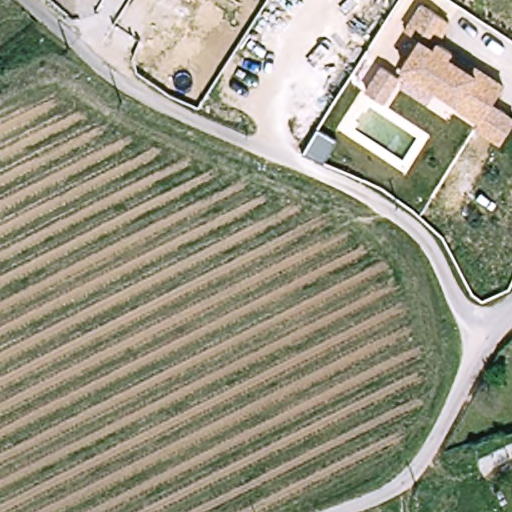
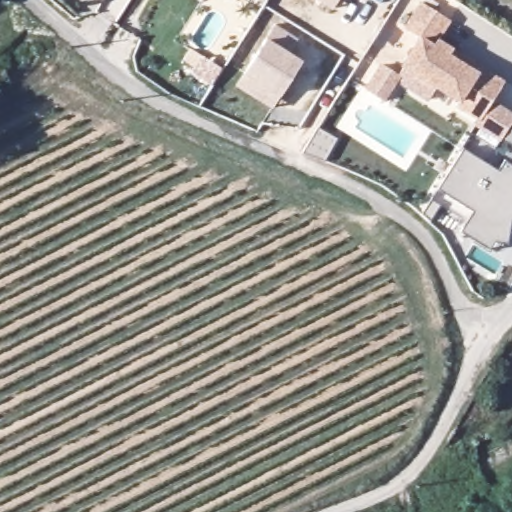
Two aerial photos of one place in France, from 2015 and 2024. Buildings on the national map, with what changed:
new [(319,0),(339,0),(333,9),(319,0)]
unchanged [(502,141),(476,126),(480,120),(455,105),(458,101),(402,65),(422,36),(405,26),(421,2),(452,20),(440,38),(507,81),(495,100),(512,110),(512,124),(502,141)]
new [(290,54),(302,61),(280,95),(272,108),(238,88),(245,74),(266,39),(273,26),(298,41),(290,54)]
unchanged [(394,72),(378,97),(362,86),(378,61),(394,72)]
new [(502,141),(512,124),(512,147),(502,141)]
unchanged [(324,163),(305,155),(316,131),(335,141),(324,163)]
new [(438,191),(463,151),(498,172),(505,162),(512,166),(512,220),(511,220),(507,244),(494,242),(489,250),(460,232),(472,212),(438,191)]

